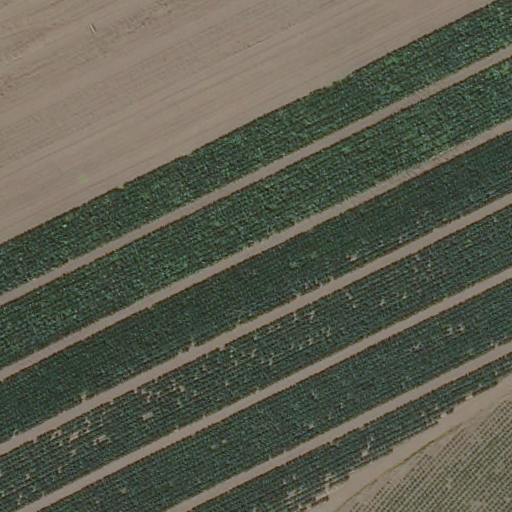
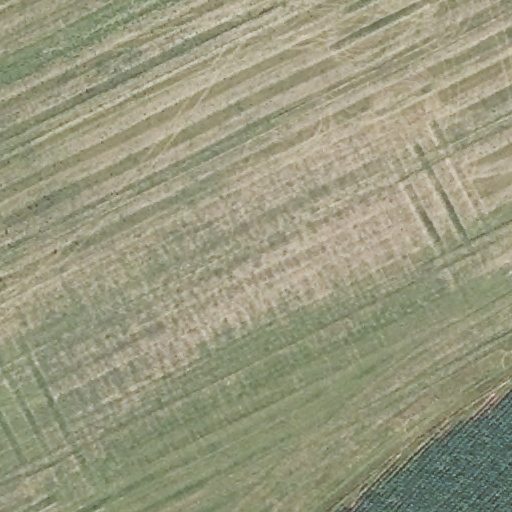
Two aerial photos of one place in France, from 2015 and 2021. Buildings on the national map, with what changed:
[]

